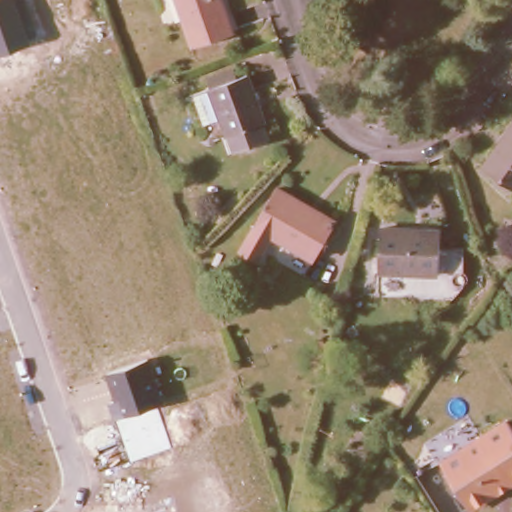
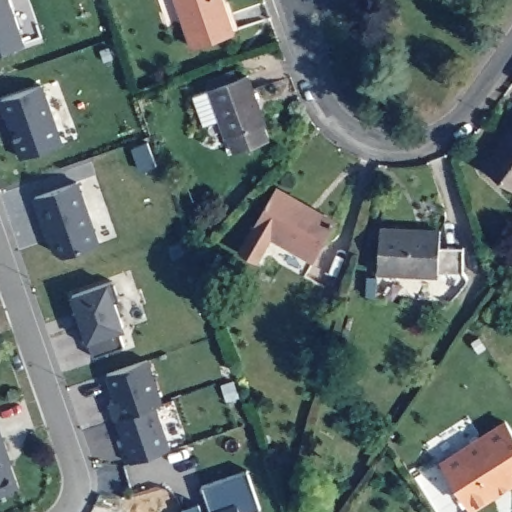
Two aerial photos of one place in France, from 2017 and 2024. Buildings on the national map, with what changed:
unchanged [(25,41),(0,50),(0,0),(12,0),(25,41)]
unchanged [(234,31),(193,45),(178,0),(223,0),(234,31)]
unchanged [(247,74),(265,122),(227,135),(222,118),(205,124),(195,94),(211,87),(247,74)]
new [(42,85),(62,142),(22,156),(0,101),(0,100),(42,85)]
unchanged [(512,129),(512,190),(485,168),(512,129)]
new [(75,182),(99,243),(64,255),(55,252),(37,196),(75,182)]
unchanged [(277,188),(336,222),(315,258),(256,224),(277,188)]
unchanged [(382,231),(441,234),(439,277),(379,275),(382,231)]
new [(113,281),(120,301),(115,302),(124,327),(120,329),(125,345),(95,355),(89,340),(85,342),(75,313),(79,311),(73,294),(113,281)]
unchanged [(149,358),(164,402),(157,404),(115,417),(110,402),(117,399),(108,372),(149,358)]
new [(172,447),(131,462),(115,417),(157,404),(172,447)]
unchanged [(512,485),(474,510),(442,460),(510,417),(512,420),(512,485)]
new [(19,486),(0,493),(0,433),(19,486)]
new [(260,506),(244,512),(211,512),(202,484),(247,468),(260,506)]
new [(199,503),(202,512),(183,512),(182,509),(199,503)]

